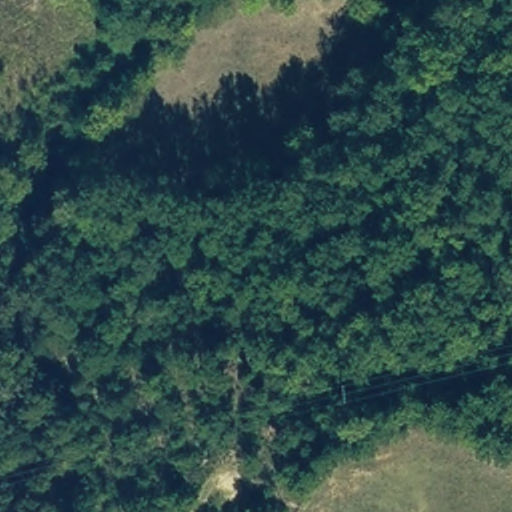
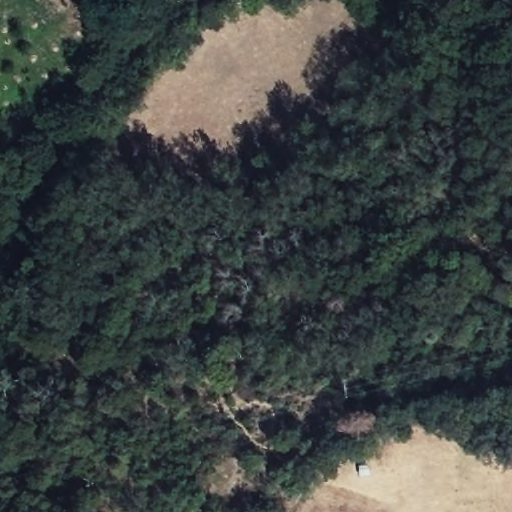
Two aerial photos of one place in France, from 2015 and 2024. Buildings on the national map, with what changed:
[]

